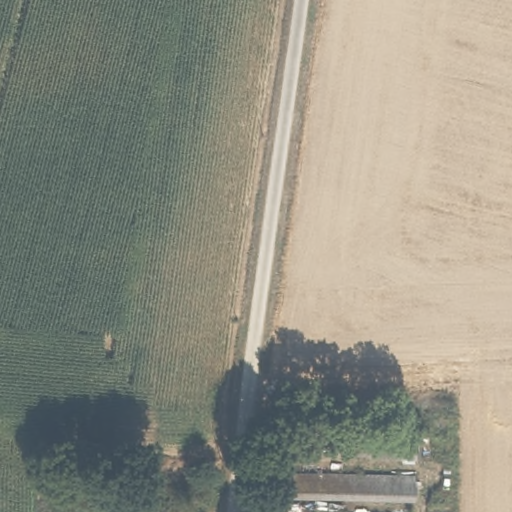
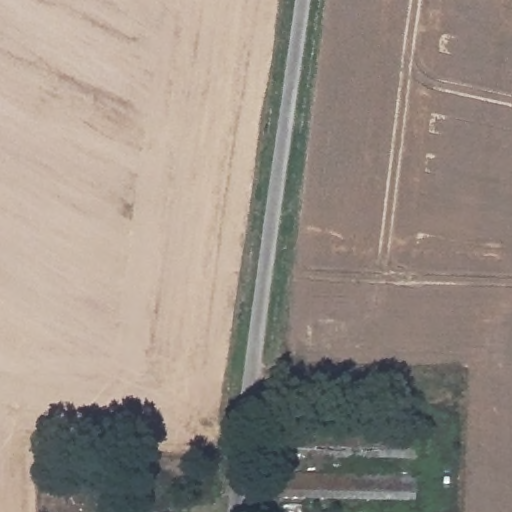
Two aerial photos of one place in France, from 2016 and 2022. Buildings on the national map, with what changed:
unchanged [(287,447),(289,424),(423,433),(421,457),(287,447)]
unchanged [(278,486),(279,467),(416,477),(415,497),(278,486)]

